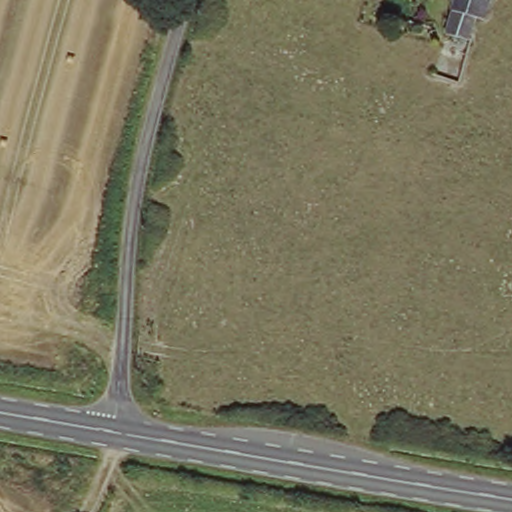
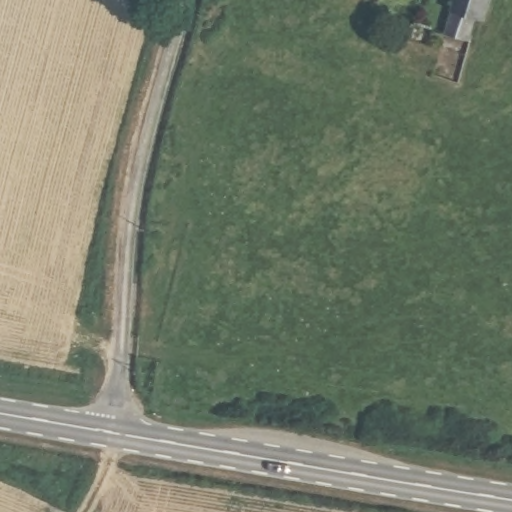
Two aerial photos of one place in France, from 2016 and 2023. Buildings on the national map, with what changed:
unchanged [(494,0),(489,20),(479,18),(473,42),(446,34),(455,0),(494,0)]

